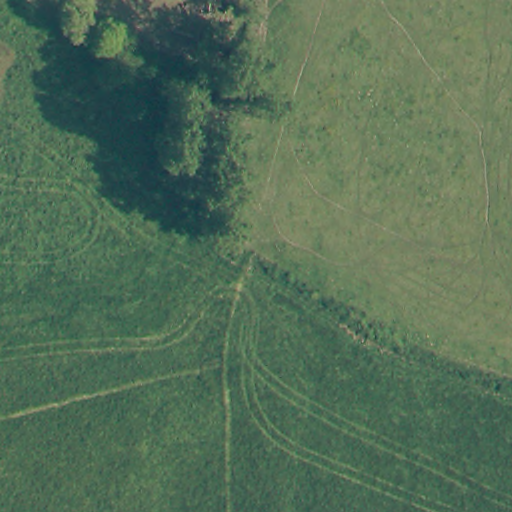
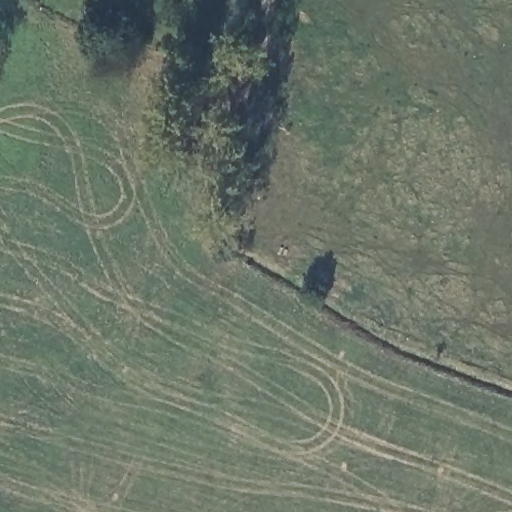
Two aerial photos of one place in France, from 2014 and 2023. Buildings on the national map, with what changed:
unchanged [(188,0),(201,0),(199,4),(188,0)]

